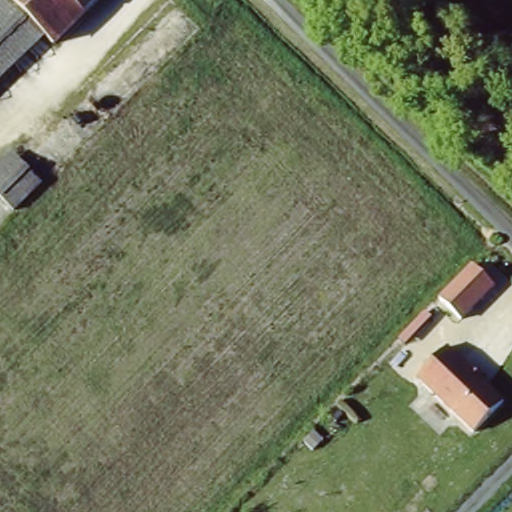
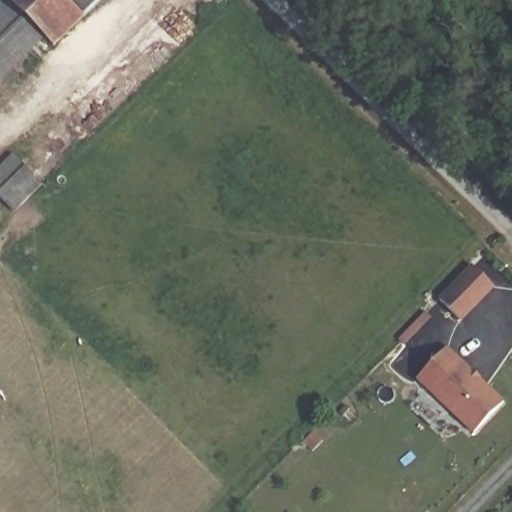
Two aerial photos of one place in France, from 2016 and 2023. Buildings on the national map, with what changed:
unchanged [(90,0),(0,89),(0,0),(90,0)]
unchanged [(13,152),(43,183),(14,211),(0,198),(0,165),(13,152)]
unchanged [(472,263),(496,286),(462,320),(438,297),(472,263)]
unchanged [(440,352),(499,404),(471,436),(411,383),(440,352)]

